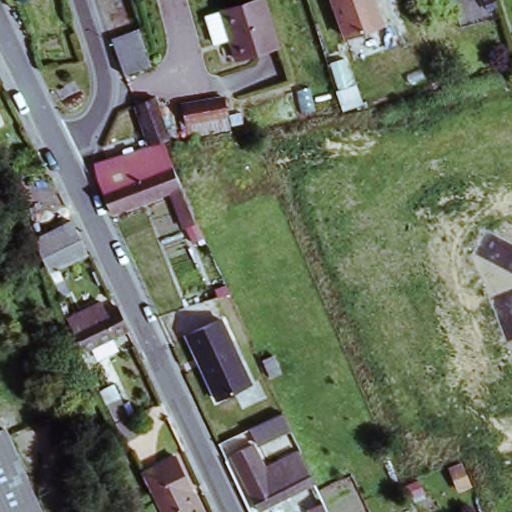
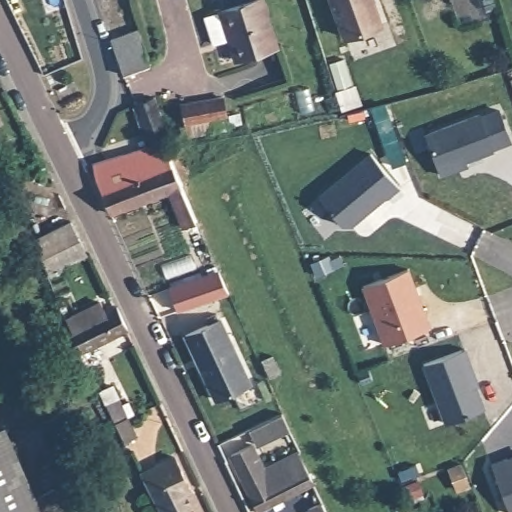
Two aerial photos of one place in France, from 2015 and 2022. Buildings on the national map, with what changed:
unchanged [(222,8),(248,0),(262,0),(276,42),(237,55),(222,8)]
unchanged [(382,16),(347,29),(336,0),(376,0),(382,16)]
unchanged [(141,27),(146,44),(151,62),(124,72),(111,36),(141,27)]
unchanged [(150,140),(135,101),(154,94),(159,107),(168,137),(150,140)]
unchanged [(224,99),(231,133),(186,139),(179,104),(224,99)]
new [(479,115),(481,119),(499,112),(511,142),(492,149),(493,152),(458,165),(459,170),(442,176),(426,135),(479,115)]
unchanged [(103,190),(95,173),(95,160),(106,156),(151,142),(164,141),(172,163),(103,190)]
new [(371,155),(399,188),(387,198),(386,198),(351,227),(344,226),(320,198),(371,155)]
unchanged [(191,238),(175,200),(169,187),(112,210),(103,190),(172,163),(186,196),(203,233),(191,238)]
unchanged [(87,250),(50,269),(37,235),(70,218),(87,250)]
new [(409,270),(430,328),(385,345),(364,286),(409,270)]
unchanged [(63,317),(78,309),(71,296),(88,287),(95,300),(100,309),(111,303),(123,326),(79,348),(63,317)]
unchanged [(184,336),(222,319),(253,385),(215,403),(184,336)]
new [(465,349),(476,379),(473,380),(484,409),(447,424),(424,364),(465,349)]
unchanged [(95,392),(109,385),(119,404),(128,421),(114,428),(105,411),(95,392)]
unchanged [(253,439),(249,430),(284,416),(291,432),(258,447),(253,439)]
unchanged [(36,512),(0,512),(0,429),(36,512)]
unchanged [(253,439),(266,462),(259,466),(265,479),(245,490),(229,450),(253,439)]
unchanged [(171,444),(187,477),(205,512),(161,512),(136,461),(171,444)]
unchanged [(259,466),(266,462),(293,449),(308,479),(253,507),(245,490),(265,479),(259,466)]
new [(507,458),(509,463),(512,462),(512,512),(510,512),(492,464),(507,458)]
unchanged [(318,498),(324,512),(307,512),(304,505),(318,498)]

